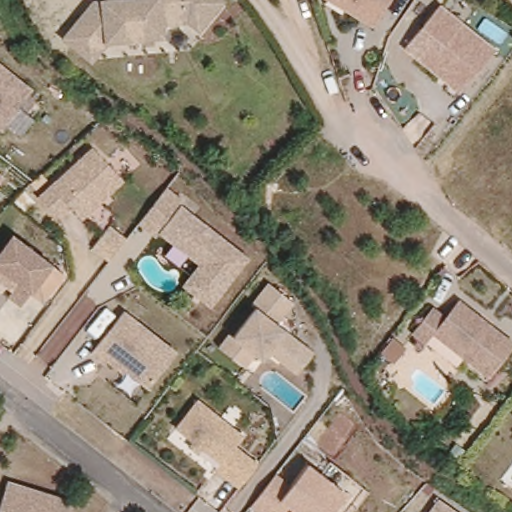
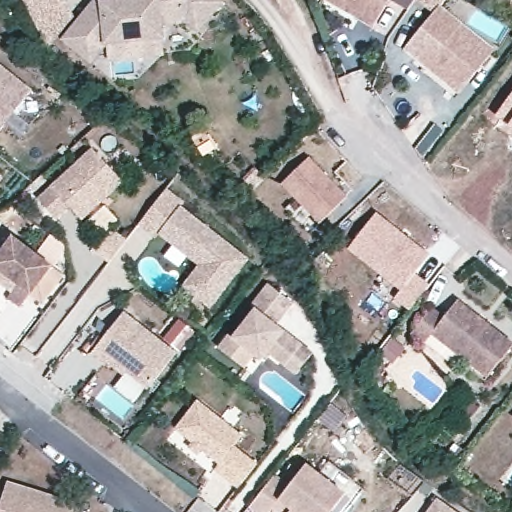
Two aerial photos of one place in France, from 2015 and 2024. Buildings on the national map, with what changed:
new [(21,0),(67,0),(74,17),(68,23),(48,50),(21,0)]
unchanged [(221,1),(196,31),(186,24),(163,26),(164,41),(103,45),(89,64),(58,43),(94,2),(116,0),(219,0),(221,1)]
unchanged [(373,24),(321,0),(387,0),(373,24)]
unchanged [(436,10),(489,51),(454,94),(400,56),(436,10)]
unchanged [(0,128),(0,69),(30,89),(0,128)]
new [(512,90),(512,130),(494,114),(512,90)]
unchanged [(92,149),(122,183),(80,221),(66,208),(53,220),(33,197),(92,149)]
new [(306,151),(344,192),(318,217),(279,177),(306,151)]
unchanged [(0,184),(0,178),(3,180),(0,184)]
unchanged [(163,192),(189,207),(183,215),(244,257),(208,308),(181,288),(196,263),(138,223),(163,192)]
new [(376,210),(431,254),(416,272),(429,284),(407,310),(392,298),(399,290),(346,248),(376,210)]
unchanged [(109,224),(128,238),(110,261),(93,247),(109,224)]
unchanged [(47,270),(30,294),(18,310),(5,302),(13,288),(0,278),(0,250),(8,239),(47,270)]
unchanged [(266,285),(293,302),(276,329),(310,356),(294,375),(264,355),(249,372),(216,347),(266,285)]
unchanged [(429,311),(441,320),(454,303),(510,347),(481,383),(426,341),(421,349),(408,338),(429,311)]
unchanged [(173,351),(143,389),(111,365),(107,369),(89,358),(121,311),(173,351)]
unchanged [(196,400),(244,436),(234,450),(256,464),(238,489),(214,473),(219,463),(169,431),(196,400)]
unchanged [(512,419),(512,424),(509,421),(512,419)]
unchanged [(286,483),(304,462),(343,495),(329,512),(251,512),(244,506),(273,475),(286,483)]
unchanged [(70,507),(69,512),(0,512),(0,499),(4,485),(70,507)]
unchanged [(426,512),(435,500),(451,512),(426,512)]

